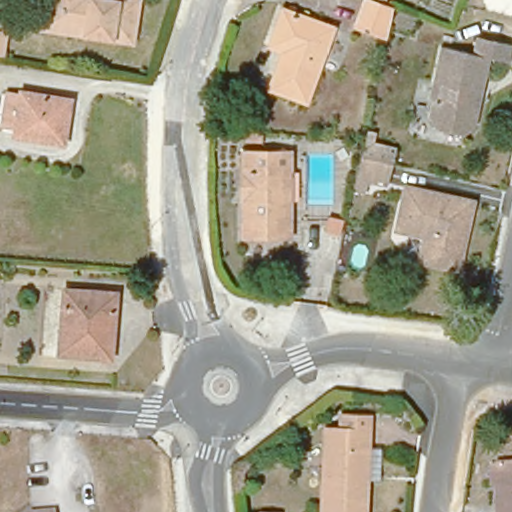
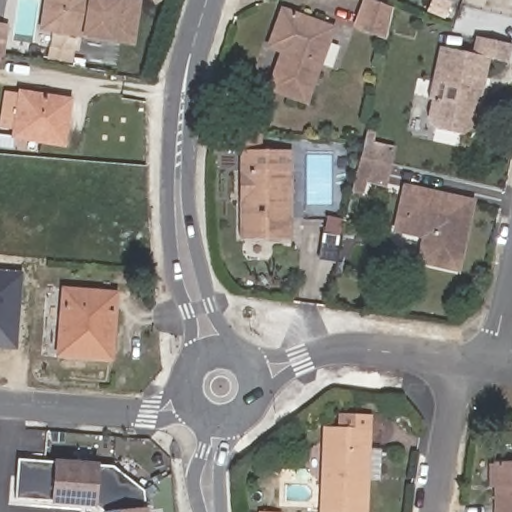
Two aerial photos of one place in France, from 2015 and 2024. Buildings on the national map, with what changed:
unchanged [(44,0),(133,0),(136,1),(130,42),(81,36),(40,30),(43,10),(44,0)]
unchanged [(384,34),(358,25),(365,1),(390,10),(384,34)]
unchanged [(331,25),(306,96),(272,85),(284,48),(272,44),(285,7),(331,25)]
unchanged [(431,102),(429,102),(440,50),(472,57),(476,41),(512,48),(507,67),(490,62),(475,132),(462,140),(437,134),(429,120),(431,102)]
unchanged [(20,92),(67,99),(60,144),(11,137),(14,119),(0,117),(0,110),(3,92),(20,94),(20,92)]
unchanged [(398,147),(386,184),(365,182),(361,194),(347,191),(361,137),(398,147)]
unchanged [(289,238),(247,240),(246,159),(289,157),(289,238)]
unchanged [(405,188),(480,205),(462,278),(416,268),(421,245),(396,239),(405,188)]
new [(0,349),(0,269),(23,271),(17,350),(0,349)]
unchanged [(66,287),(120,292),(114,354),(61,349),(66,287)]
unchanged [(372,480),(368,480),(366,512),(327,512),(317,512),(322,428),(340,428),(340,412),(371,413),(370,448),(373,448),(372,480)]
new [(16,498),(20,459),(55,462),(54,459),(99,462),(98,466),(113,466),(144,491),(147,507),(148,512),(103,512),(95,503),(95,507),(50,505),(50,500),(16,498)]
unchanged [(512,465),(512,512),(503,512),(502,487),(497,487),(497,470),(502,470),(502,466),(512,465)]

